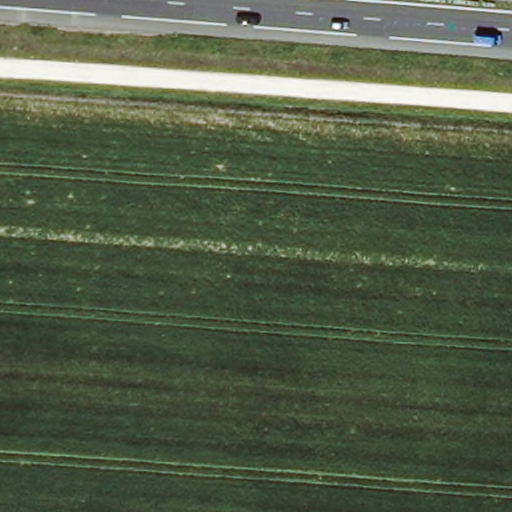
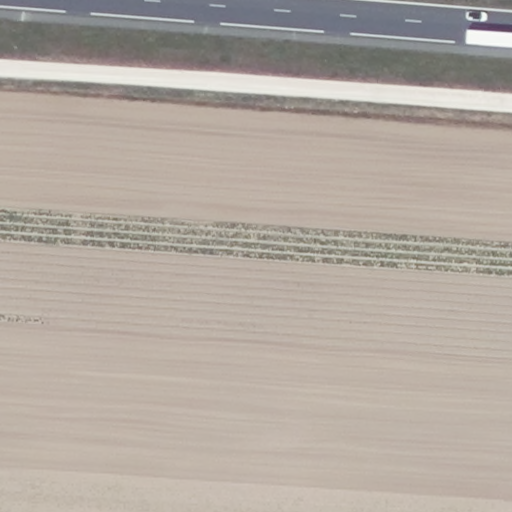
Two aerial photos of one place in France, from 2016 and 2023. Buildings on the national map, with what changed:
[]

